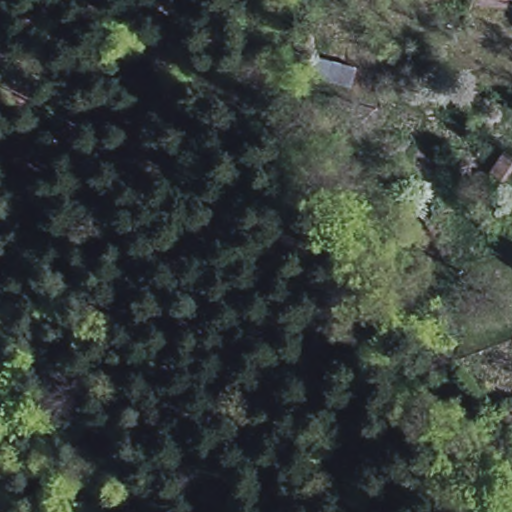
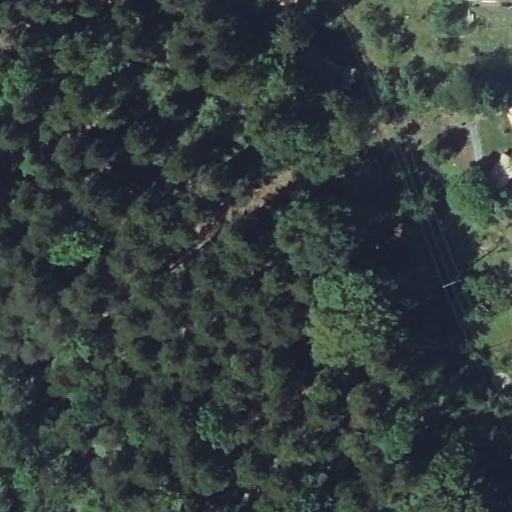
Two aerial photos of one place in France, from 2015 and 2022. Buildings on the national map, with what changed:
unchanged [(512,156),(512,168),(500,185),(488,178),(505,152),(512,156)]

